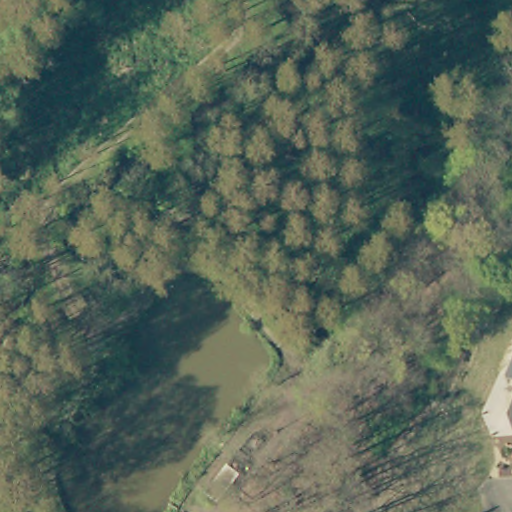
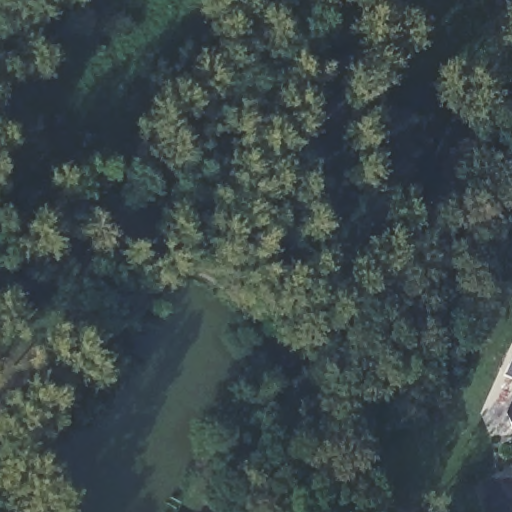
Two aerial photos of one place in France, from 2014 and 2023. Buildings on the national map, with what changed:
unchanged [(507,423),(501,420),(496,406),(511,375),(494,366),(507,338),(512,341),(512,429),(506,426),(507,423)]
unchanged [(253,471),(227,512),(220,512),(200,496),(230,454),(253,471)]

